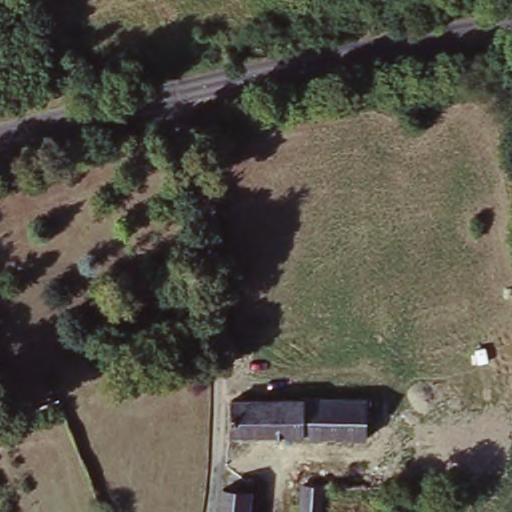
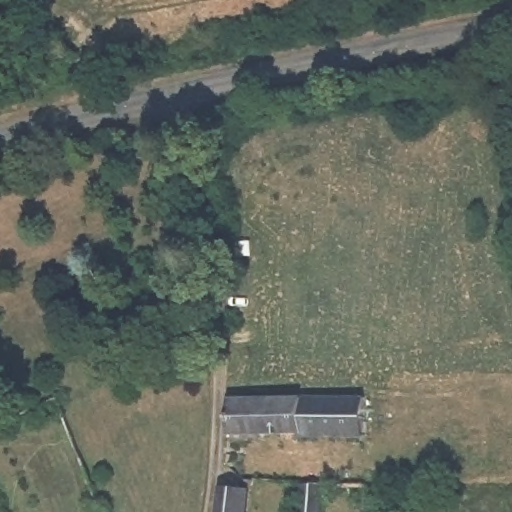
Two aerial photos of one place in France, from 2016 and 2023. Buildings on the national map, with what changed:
unchanged [(300,404),(300,398),(355,395),(358,436),(304,441),(302,435),(232,441),(229,409),(300,404)]
unchanged [(317,512),(297,512),(297,489),(317,489),(317,512)]
unchanged [(243,512),(217,512),(219,498),(245,495),(243,512)]

